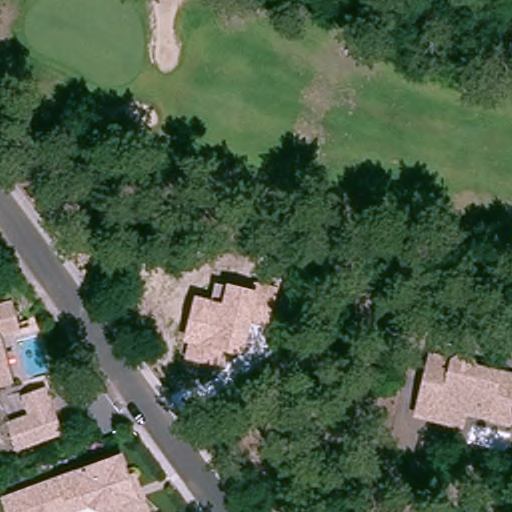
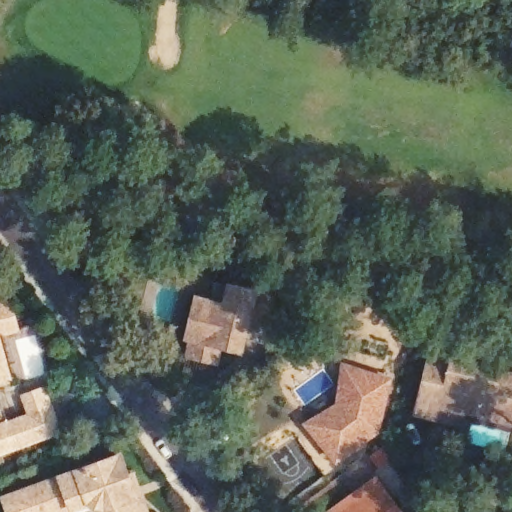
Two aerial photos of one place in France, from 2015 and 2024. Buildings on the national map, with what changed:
unchanged [(195,295),(225,302),(228,283),(254,289),(255,280),(283,287),(274,328),(253,322),(246,354),(224,349),(220,366),(188,359),(191,342),(184,340),(195,295)]
unchanged [(7,302),(14,328),(0,331),(0,304),(7,302)]
unchanged [(454,361),(461,357),(471,360),(475,367),(512,376),(512,424),(466,411),(442,405),(447,384),(426,379),(432,356),(454,361)]
new [(337,402),(342,360),(395,376),(382,432),(337,465),(304,422),(337,402)]
unchanged [(4,378),(0,379),(0,361),(4,378)]
unchanged [(447,384),(442,405),(466,411),(462,426),(417,415),(426,379),(447,384)]
unchanged [(32,411),(25,392),(44,386),(60,428),(17,443),(9,420),(32,411)]
unchanged [(75,512),(7,512),(0,494),(119,450),(127,472),(137,499),(142,497),(147,512),(94,512),(93,509),(90,506),(75,512)]
new [(405,512),(322,512),(376,473),(405,512)]

